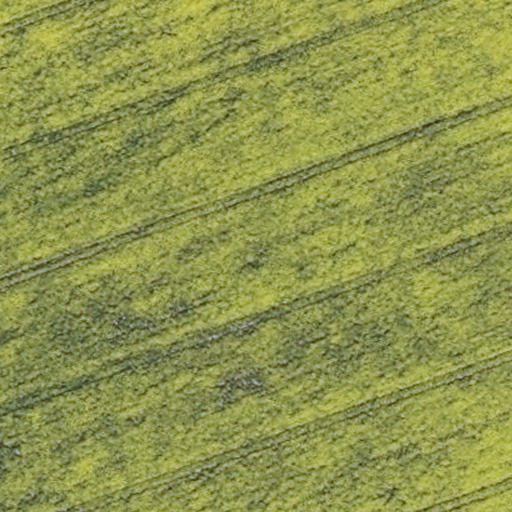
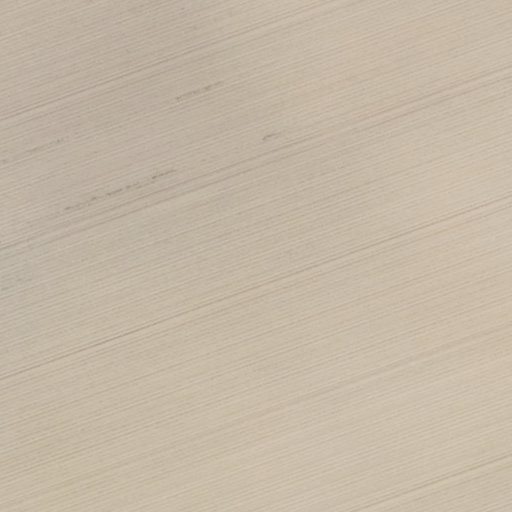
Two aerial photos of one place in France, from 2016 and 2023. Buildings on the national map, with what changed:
[]

